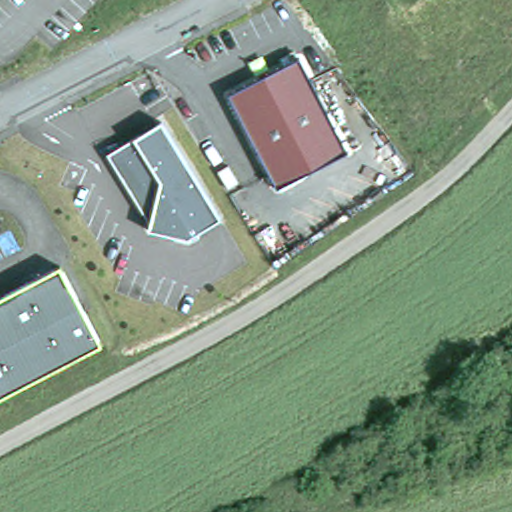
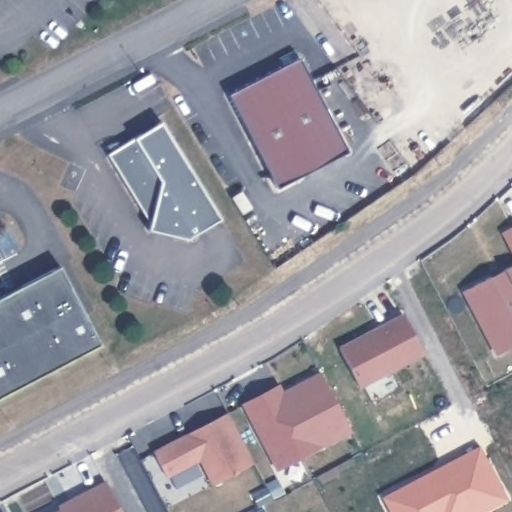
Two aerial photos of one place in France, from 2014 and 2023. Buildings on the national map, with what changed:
unchanged [(303,64),(352,158),(280,195),(231,100),(303,64)]
unchanged [(221,220),(190,239),(148,229),(153,218),(138,204),(107,156),(134,139),(160,123),(221,220)]
new [(512,226),(512,257),(501,232),(512,226)]
new [(512,312),(512,348),(494,356),(461,292),(504,269),(512,264),(512,300),(507,303),(512,312)]
unchanged [(62,270),(104,350),(0,404),(0,303),(62,270)]
new [(424,355),(359,387),(338,345),(402,312),(424,355)]
new [(282,391),(319,370),(353,431),(277,472),(241,403),(279,384),(282,391)]
new [(254,462),(210,484),(198,461),(167,477),(152,449),(229,412),(254,462)]
new [(478,449),(486,464),(505,499),(481,512),(391,512),(384,498),(392,494),(417,480),(478,449)]
new [(58,506),(70,500),(105,481),(121,512),(57,512),(60,510),(61,510),(58,506)]

